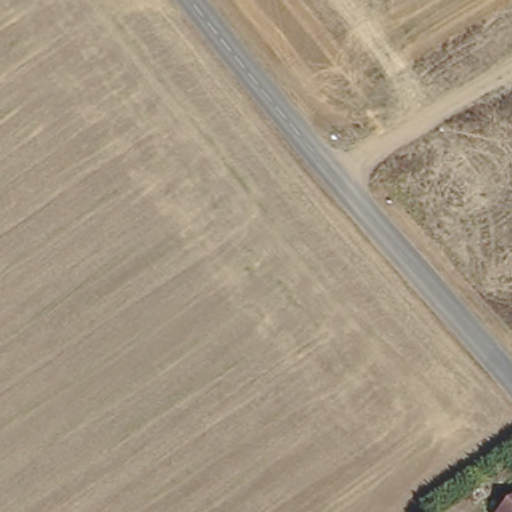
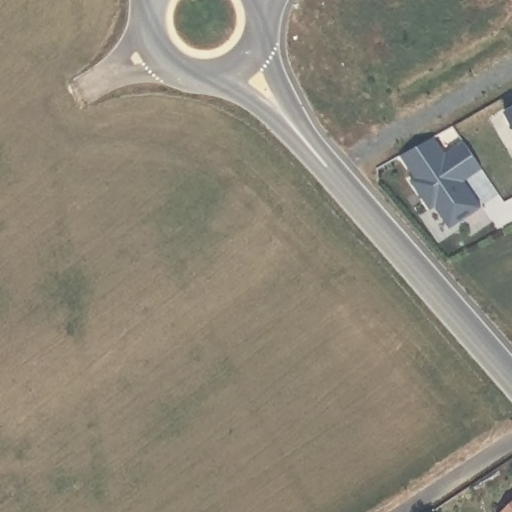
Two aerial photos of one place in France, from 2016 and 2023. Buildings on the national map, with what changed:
new [(506,113),(512,110),(512,122),(506,113)]
new [(433,136),(445,154),(464,141),(482,167),(463,180),(481,205),(450,227),(435,205),(430,208),(411,180),(416,176),(401,155),(433,136)]
unchanged [(512,499),(512,512),(502,512),(500,510),(512,499)]

